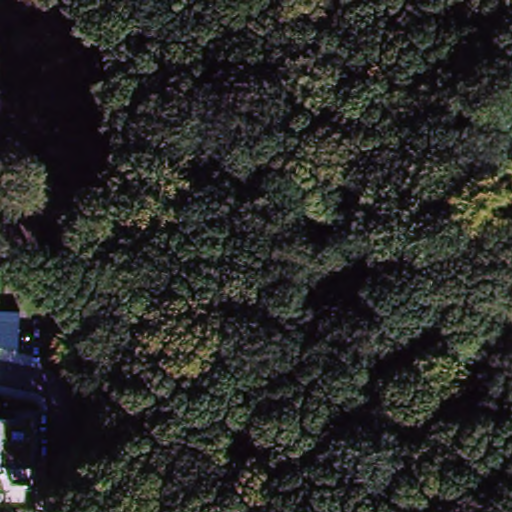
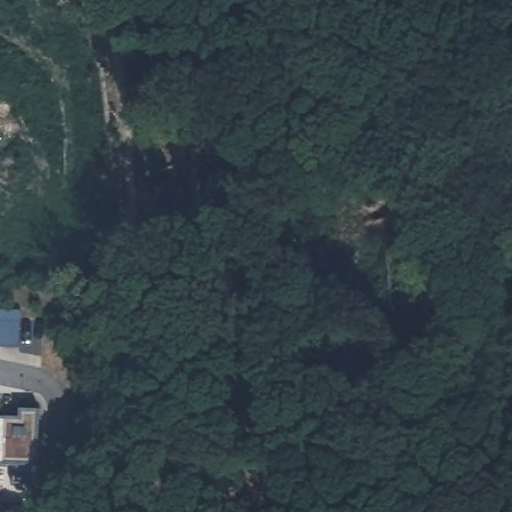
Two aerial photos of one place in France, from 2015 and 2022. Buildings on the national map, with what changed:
unchanged [(20,346),(0,345),(0,310),(21,310),(20,346)]
unchanged [(19,410),(46,410),(45,465),(0,463),(0,419),(18,420),(19,410)]

